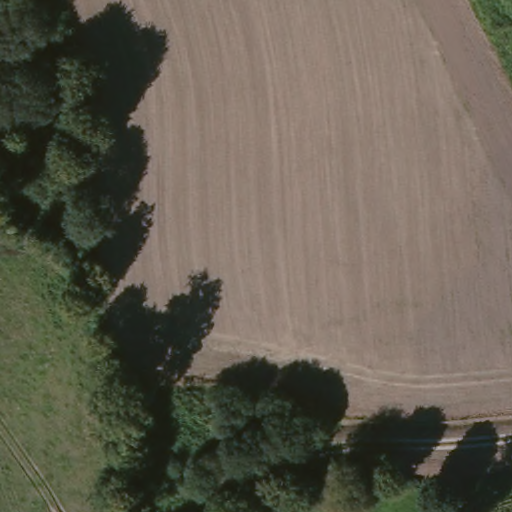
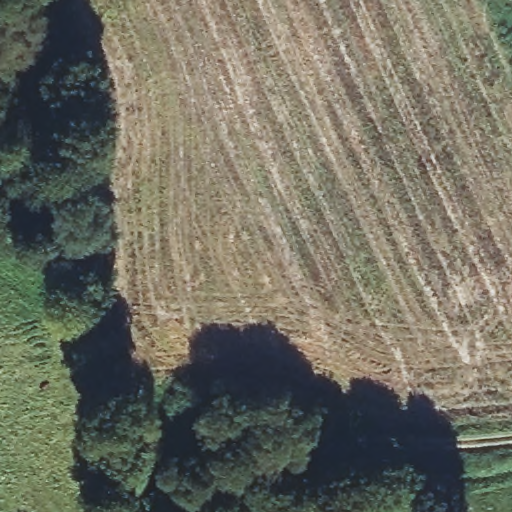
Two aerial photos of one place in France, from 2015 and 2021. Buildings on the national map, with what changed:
[]

